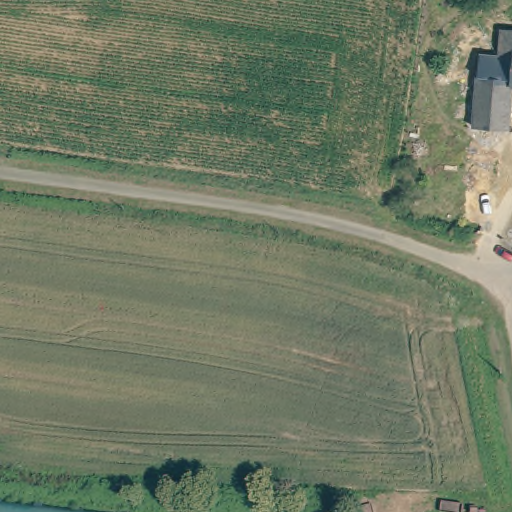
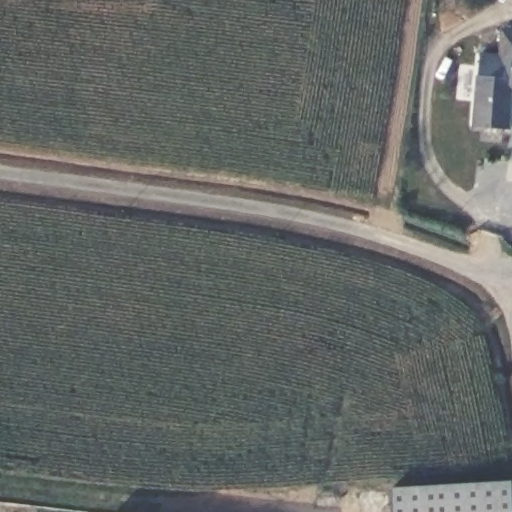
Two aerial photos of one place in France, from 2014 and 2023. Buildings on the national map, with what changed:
unchanged [(512,30),(512,76),(500,76),(502,29),(512,30)]
unchanged [(478,114),(479,77),(500,76),(512,76),(512,123),(478,123),(478,114)]
new [(512,512),(393,512),(391,487),(511,481),(512,492),(512,512)]
unchanged [(102,512),(0,512),(0,499),(102,512)]

